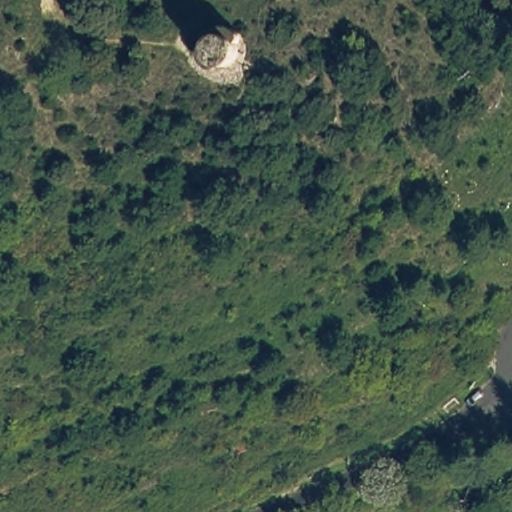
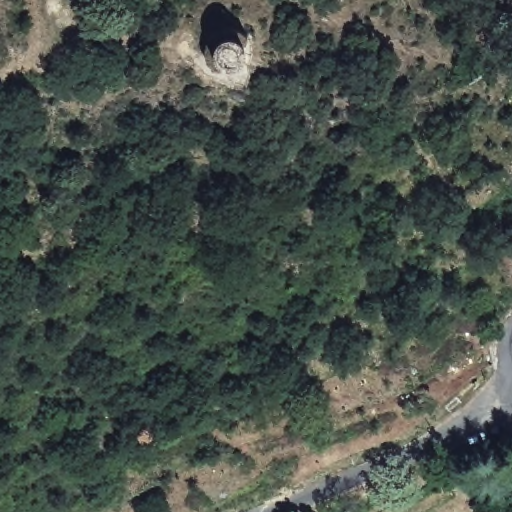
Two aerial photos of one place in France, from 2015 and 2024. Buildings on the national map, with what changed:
unchanged [(216,63),(215,54),(215,46),(218,40),(223,36),(230,35),(236,35),(245,40),(250,47),(250,56),(247,61),(242,65),(234,70),(222,69),(216,63)]

